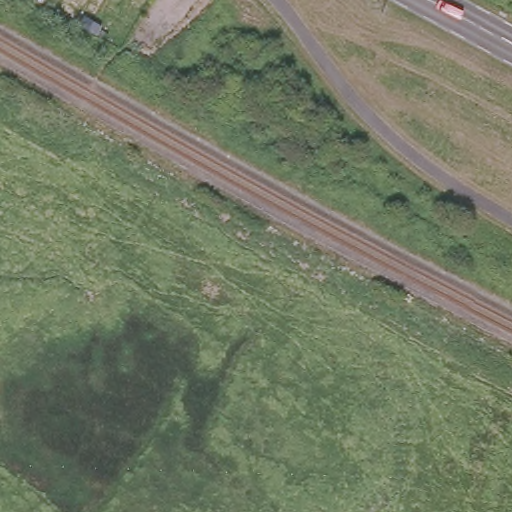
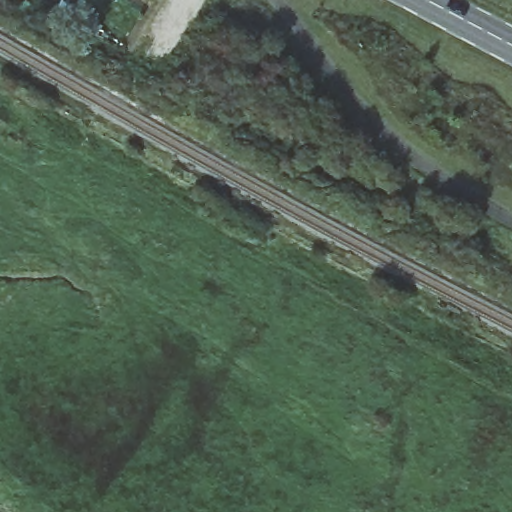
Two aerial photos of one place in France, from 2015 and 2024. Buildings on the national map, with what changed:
unchanged [(87,9),(105,19),(100,27),(92,22),(87,21),(82,17),(87,9)]

